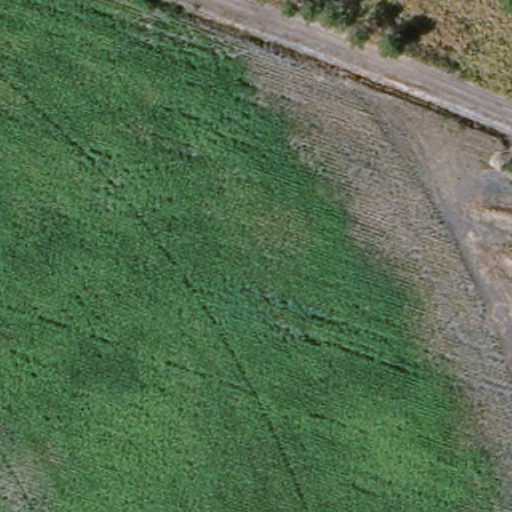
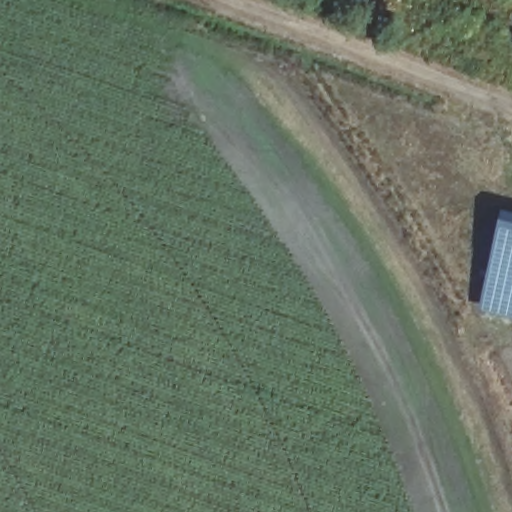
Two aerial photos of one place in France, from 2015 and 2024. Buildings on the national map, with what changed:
new [(481,311),(505,214),(512,216),(512,319),(481,311)]

